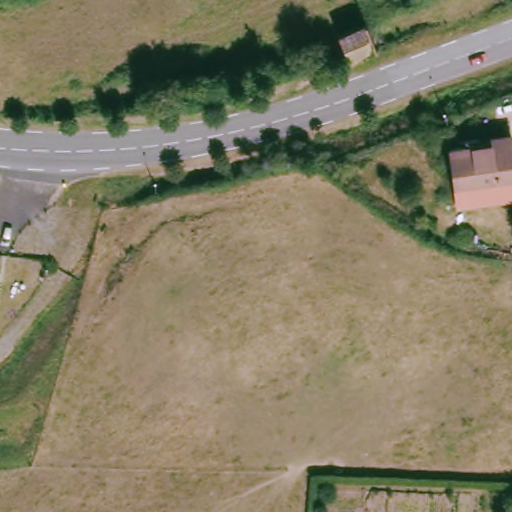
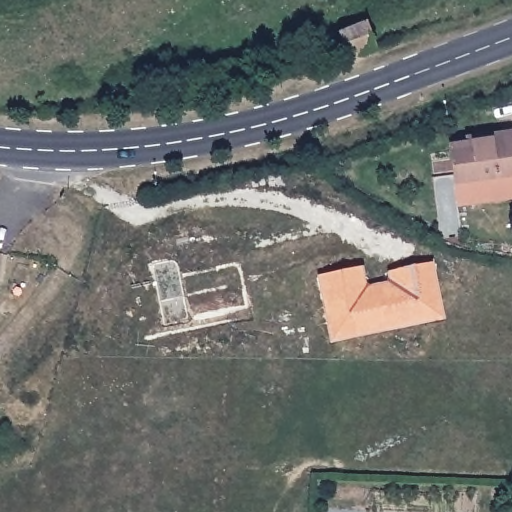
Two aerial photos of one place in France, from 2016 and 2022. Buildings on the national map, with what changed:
unchanged [(339,35),(366,24),(378,53),(351,62),(339,35)]
unchanged [(454,193),(446,146),(489,139),(487,133),(512,131),(512,186),(454,193)]
new [(334,337),(321,276),(355,268),(363,266),(367,287),(394,281),(393,271),(434,262),(444,312),(422,317),(376,328),(334,337)]

